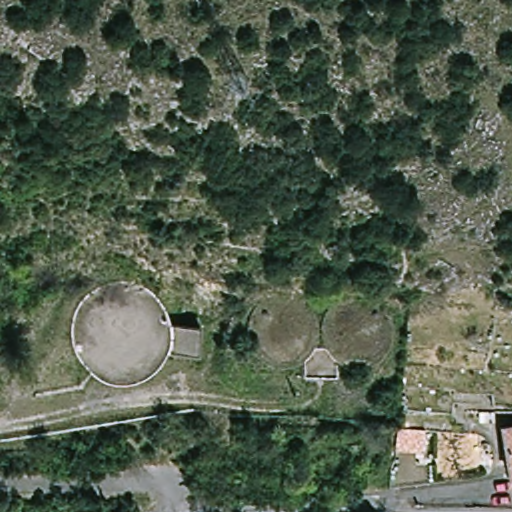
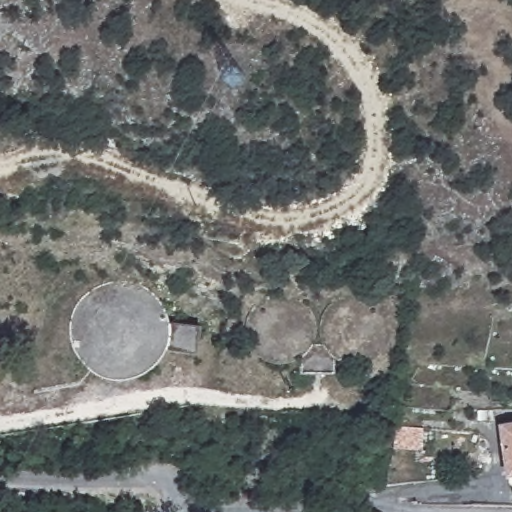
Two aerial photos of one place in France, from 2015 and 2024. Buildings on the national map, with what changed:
unchanged [(512,423),(512,475),(509,475),(504,424),(512,423)]

